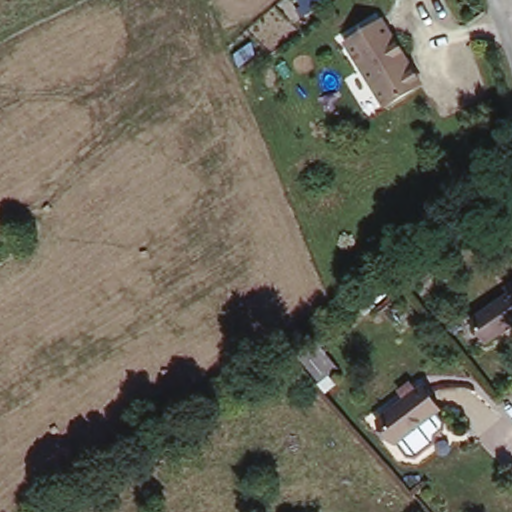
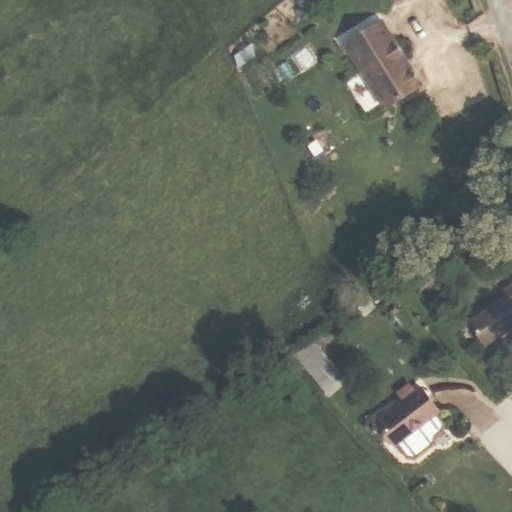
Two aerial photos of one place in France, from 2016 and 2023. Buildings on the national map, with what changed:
unchanged [(424,86),(386,106),(349,42),(387,22),(424,86)]
unchanged [(512,281),(512,317),(478,341),(459,318),(512,281)]
unchanged [(416,385),(436,408),(393,445),(373,421),(416,385)]

